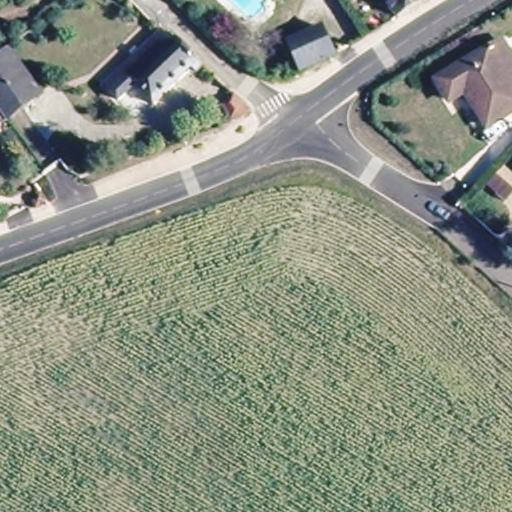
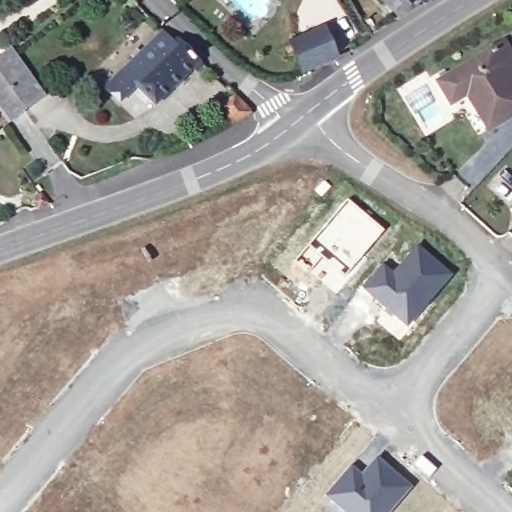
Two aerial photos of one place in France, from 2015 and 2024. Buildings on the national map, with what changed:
unchanged [(396,12),(383,0),(416,0),(396,12)]
unchanged [(186,79),(181,73),(154,99),(122,67),(164,27),(175,39),(180,35),(205,60),(186,79)]
unchanged [(338,56),(304,72),(296,53),(290,55),(287,49),(293,46),(291,43),(326,28),(338,56)]
unchanged [(510,79),(512,84),(512,115),(489,128),(468,93),(452,103),(439,82),(505,42),(512,55),(512,78),(510,79)]
unchanged [(0,55),(8,48),(40,93),(23,106),(0,75),(0,55)]
unchanged [(5,119),(0,124),(0,75),(23,106),(5,119)]
unchanged [(254,111),(232,122),(222,105),(237,93),(254,111)]
unchanged [(51,204),(39,210),(36,204),(43,194),(51,204)]
new [(348,198),(385,229),(350,271),(314,239),(348,198)]
new [(383,262),(393,270),(417,242),(453,273),(408,327),(361,287),(383,262)]
new [(361,472),(377,455),(413,485),(390,512),(341,512),(323,496),(351,464),(361,472)]

